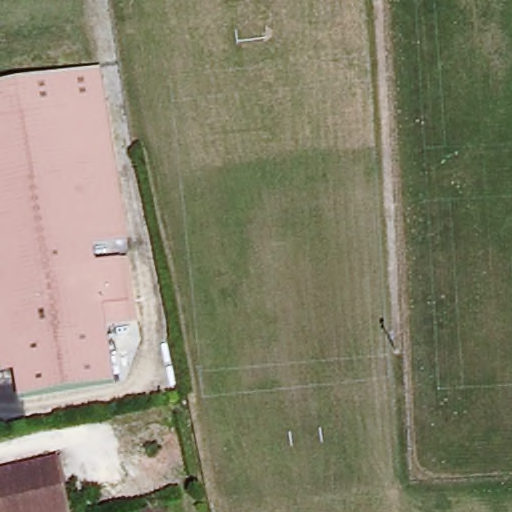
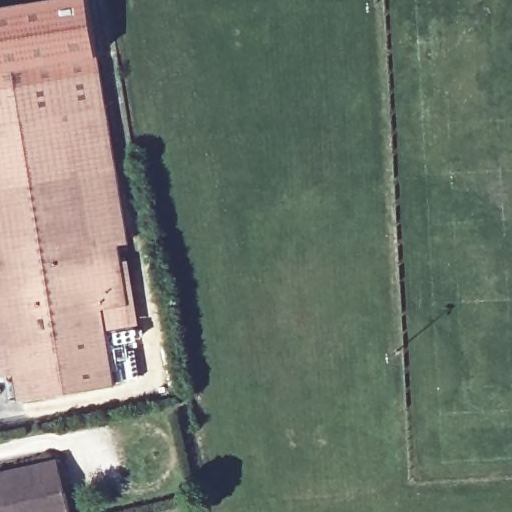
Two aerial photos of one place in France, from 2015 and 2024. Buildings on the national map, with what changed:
new [(0,87),(0,6),(38,0),(89,0),(98,57),(100,72),(0,87)]
unchanged [(128,244),(94,250),(97,266),(127,259),(138,326),(106,331),(114,387),(19,402),(15,372),(2,375),(0,363),(0,87),(100,72),(128,244)]
unchanged [(69,512),(0,512),(0,471),(57,458),(69,512)]

